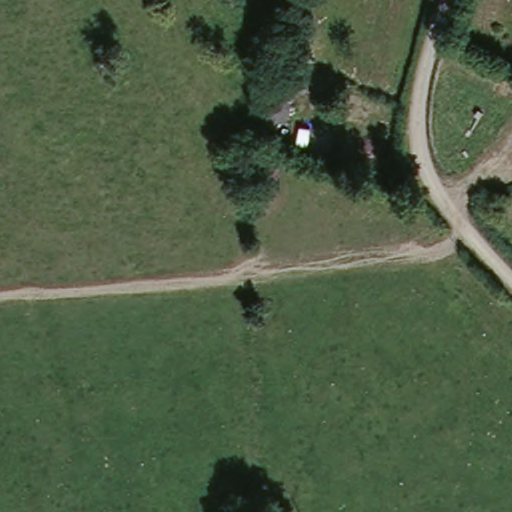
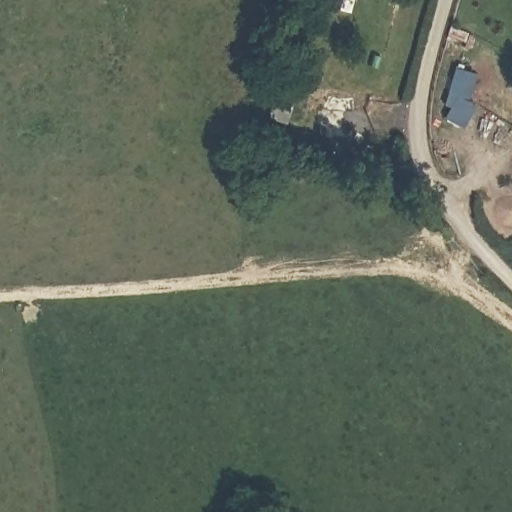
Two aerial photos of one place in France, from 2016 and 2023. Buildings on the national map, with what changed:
new [(474,77),(467,105),(474,109),(462,132),(443,121),(452,100),(446,97),(453,71),(474,77)]

